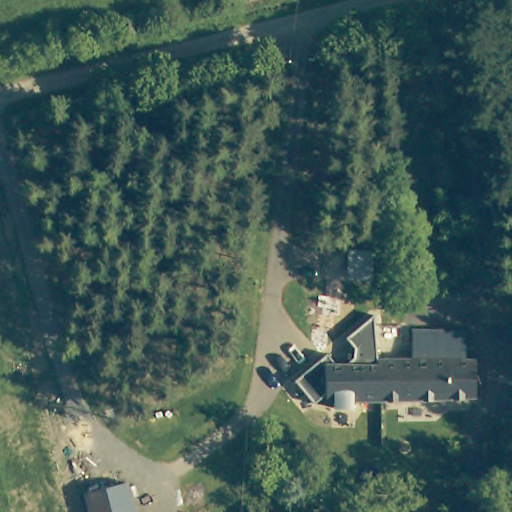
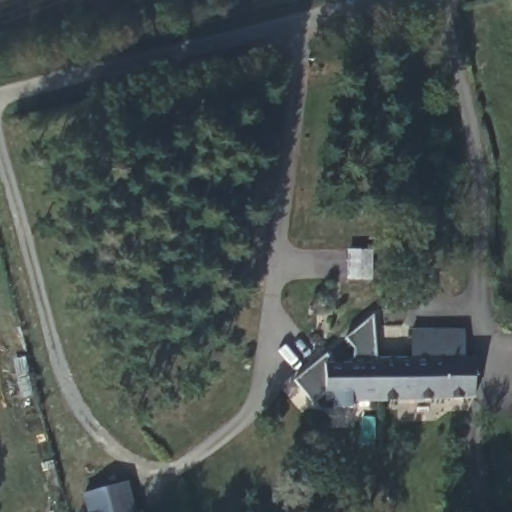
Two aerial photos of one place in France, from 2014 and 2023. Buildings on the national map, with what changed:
unchanged [(409,360),(444,360),(463,359),(473,359),(472,397),(472,398),(453,399),(378,398),(351,398),(351,406),(332,406),(332,398),(325,398),(325,391),(312,401),(300,385),(294,377),(298,374),(311,364),(326,352),(335,363),(345,363),(353,358),(354,348),(346,337),(374,316),(378,361),(409,360)]
unchanged [(444,360),(409,360),(410,331),(464,331),(463,359),(444,360)]
unchanged [(82,494),(122,485),(129,512),(86,512),(82,494)]

